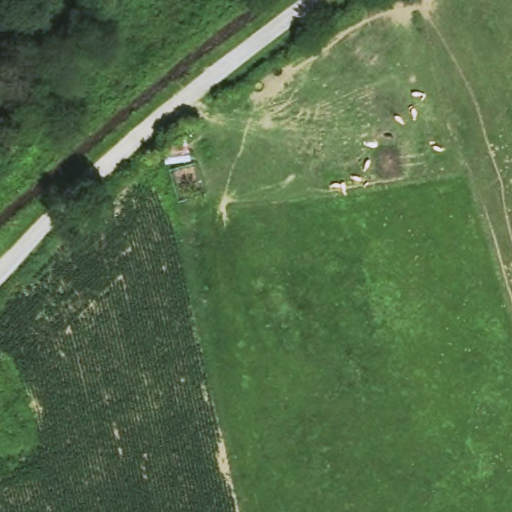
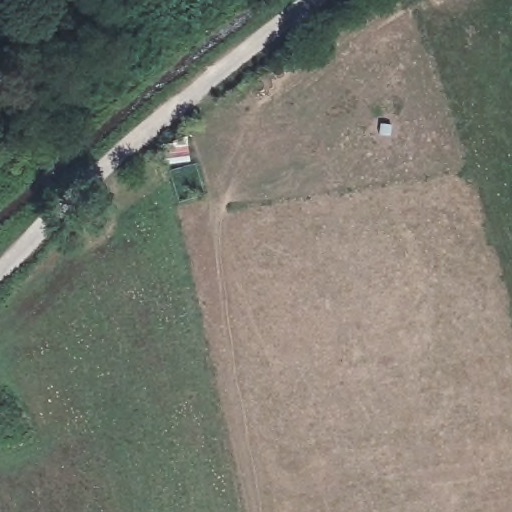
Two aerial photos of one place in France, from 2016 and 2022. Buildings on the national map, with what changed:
unchanged [(162,154),(191,129),(197,186),(167,192),(162,154)]

